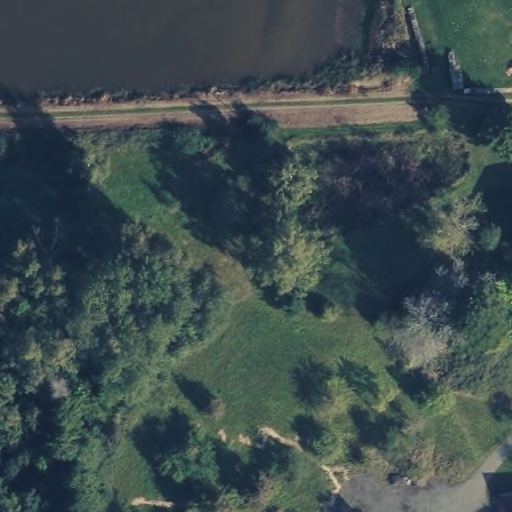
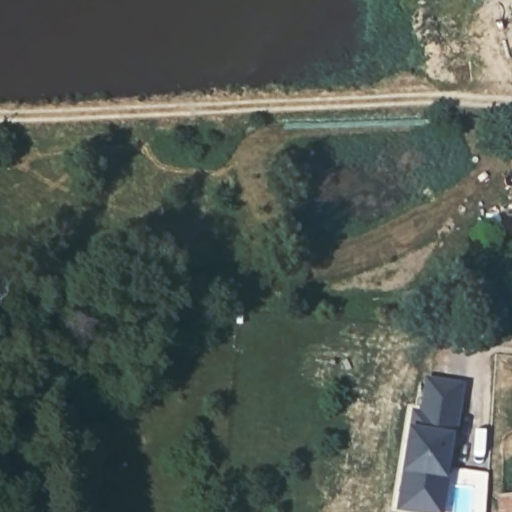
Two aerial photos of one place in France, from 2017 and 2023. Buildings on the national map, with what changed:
new [(421,409),(425,377),(464,382),(443,512),(413,512),(397,510),(413,408),(421,409)]
unchanged [(512,488),(512,512),(493,512),(491,491),(512,488)]

